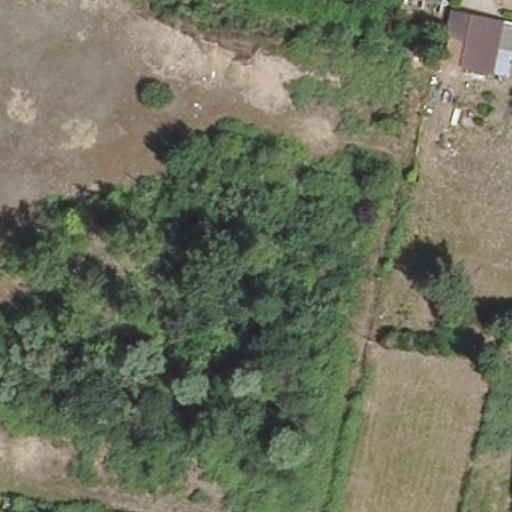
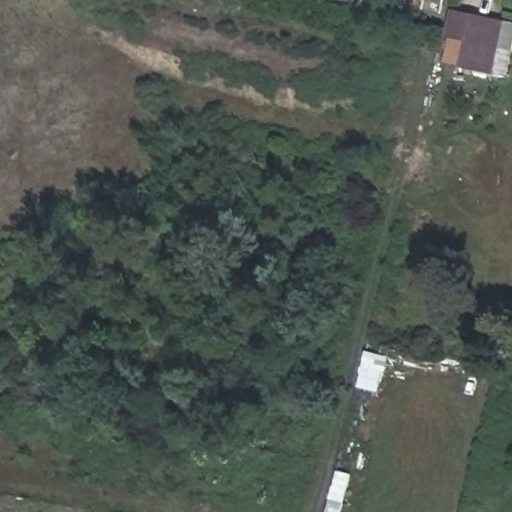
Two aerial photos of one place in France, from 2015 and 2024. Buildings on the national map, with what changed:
unchanged [(445,37),(450,14),(468,18),(505,28),(512,30),(512,54),(467,43),(462,41),(445,37)]
unchanged [(461,64),(467,43),(512,54),(512,59),(508,77),(461,64)]

